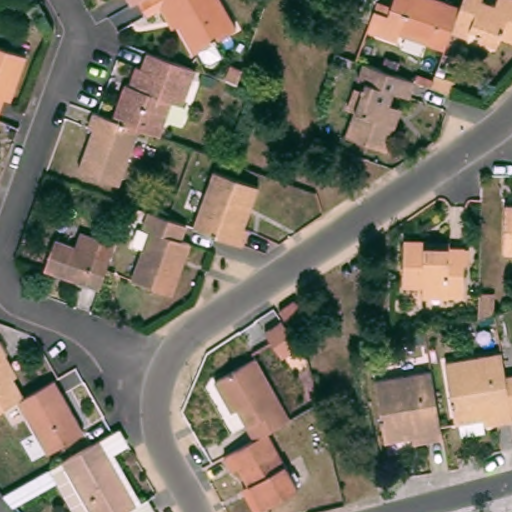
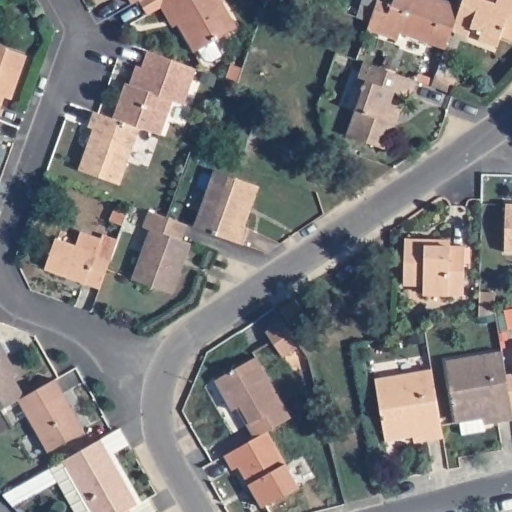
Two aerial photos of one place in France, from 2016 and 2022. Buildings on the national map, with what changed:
unchanged [(131,0),(141,0),(133,5),(131,0)]
unchanged [(162,7),(150,14),(142,0),(221,0),(237,29),(196,53),(180,23),(174,26),(162,7)]
unchanged [(400,30),(397,37),(372,28),(367,26),(370,19),(377,0),(378,0),(393,5),(395,0),(447,0),(461,5),(457,16),(452,29),(446,46),(400,30)]
unchanged [(482,30),(473,26),(470,36),(452,29),(457,16),(461,5),(462,3),(463,0),(485,0),(497,4),(498,0),(511,0),(512,0),(512,37),(503,34),(502,36),(498,44),(480,37),(482,30)]
unchanged [(27,55),(11,98),(0,95),(0,45),(27,55)]
unchanged [(194,69),(197,70),(190,88),(183,107),(177,106),(174,104),(162,136),(140,128),(114,119),(127,86),(131,87),(138,66),(144,69),(150,54),(152,55),(159,57),(182,65),(194,69)]
unchanged [(387,59),(400,64),(397,73),(383,69),(387,59)]
unchanged [(393,139),(387,152),(348,139),(357,113),(351,110),(358,90),(366,92),(368,83),(358,80),(365,64),(417,84),(411,99),(397,93),(387,121),(398,126),(393,139)]
unchanged [(232,66),(244,70),(238,85),(227,81),(232,66)]
unchanged [(202,74),(217,79),(213,88),(199,83),(202,74)]
unchanged [(437,77),(457,84),(452,97),(433,89),(437,77)]
unchanged [(1,103),(0,105),(0,102),(1,103)]
unchanged [(114,119),(140,128),(121,183),(79,168),(94,129),(87,127),(94,112),(100,113),(114,119)]
unchanged [(193,228),(212,176),(256,192),(243,231),(247,233),(242,246),(216,237),(193,228)]
unchanged [(506,203),(512,203),(512,249),(503,249),(506,203)]
unchanged [(183,230),(177,244),(187,247),(167,297),(128,284),(146,234),(140,232),(146,216),(165,223),(183,230)]
unchanged [(100,289),(45,269),(57,240),(78,248),(81,238),(100,244),(102,240),(116,245),(100,289)]
unchanged [(458,280),(458,298),(443,297),(418,296),(418,286),(401,286),(402,242),(423,242),(447,243),(446,249),(460,249),(458,280)]
unchanged [(296,300),(304,314),(290,325),(280,309),(296,300)]
unchanged [(478,303),(491,300),(493,313),(477,317),(478,303)]
unchanged [(300,348),(283,358),(266,333),(283,321),(288,329),(300,348)]
unchanged [(463,434),(461,422),(457,423),(446,361),(503,351),(507,375),(512,405),(512,418),(501,421),(486,423),(487,430),(463,434)]
unchanged [(14,377),(20,374),(31,394),(17,402),(0,411),(0,352),(14,377)]
unchanged [(267,432),(255,439),(247,426),(250,424),(241,406),(233,410),(216,381),(256,357),(292,419),(267,432)]
unchanged [(412,436),(387,441),(377,379),(433,369),(445,437),(430,440),(413,443),(412,436)]
unchanged [(512,374),(512,405),(507,375),(512,374)]
unchanged [(54,381),(83,432),(47,453),(17,402),(31,394),(54,381)]
unchanged [(245,488),(250,484),(240,466),(233,470),(225,456),(255,439),(267,432),(299,487),(263,508),(257,511),(245,488)]
unchanged [(131,511),(128,512),(97,512),(67,460),(103,440),(141,505),(131,511)]
unchanged [(128,512),(131,511),(131,512),(128,512)]

